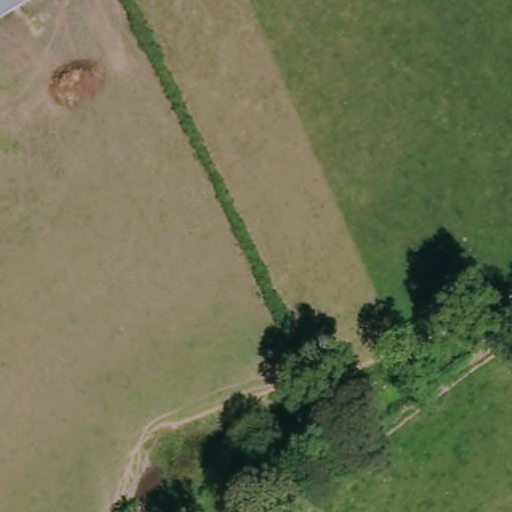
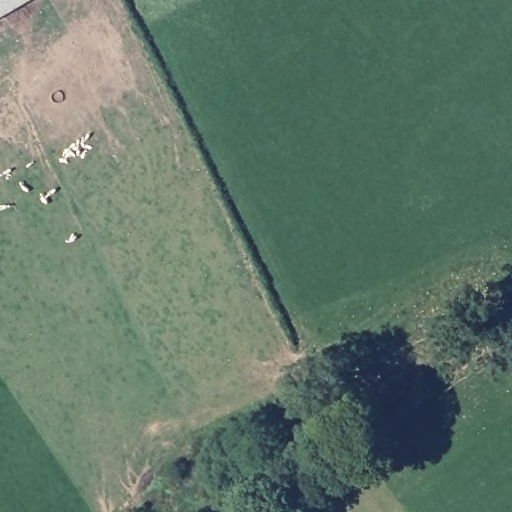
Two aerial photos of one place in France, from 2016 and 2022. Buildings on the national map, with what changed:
unchanged [(45,0),(0,25),(0,0),(45,0)]

